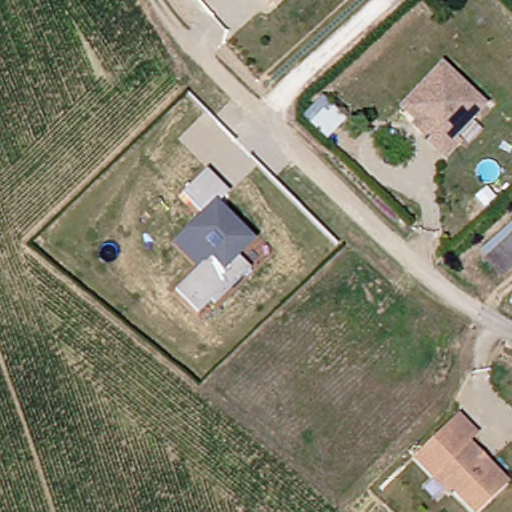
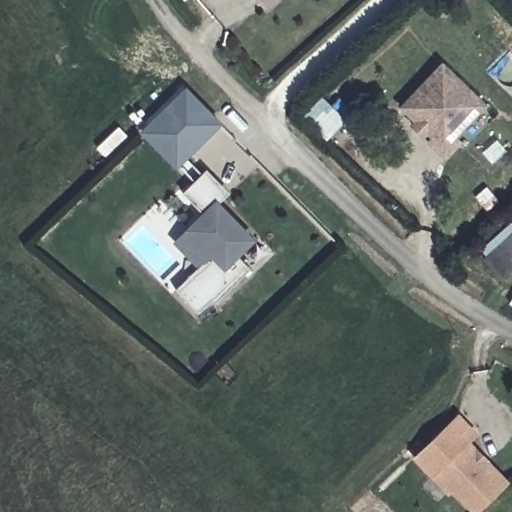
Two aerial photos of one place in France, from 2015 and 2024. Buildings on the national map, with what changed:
unchanged [(272,4),(268,0),(277,0),(272,4)]
unchanged [(426,139),(431,134),(432,133),(425,125),(419,130),(410,121),(416,115),(402,99),(446,61),(485,105),(451,134),(458,142),(441,156),(426,139)]
new [(222,125),(176,168),(141,133),(186,90),(220,123),(222,125)]
unchanged [(347,119),(326,140),(302,118),(323,95),(347,119)]
unchanged [(192,223),(183,214),(172,202),(187,187),(210,164),(231,185),(219,198),(254,234),(239,248),(253,263),(217,298),(214,294),(200,307),(177,284),(187,274),(165,250),(177,238),(192,223)]
unchanged [(512,257),(489,275),(474,257),(512,227),(512,257)]
unchanged [(512,294),(512,308),(507,305),(512,294)]
unchanged [(463,415),(479,432),(471,439),(509,480),(478,508),(455,484),(452,487),(420,453),(463,415)]

